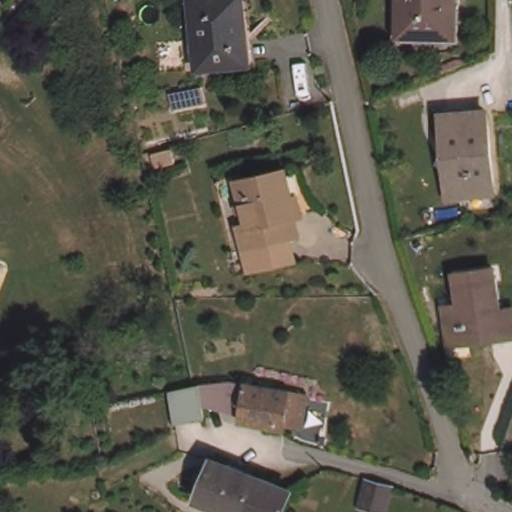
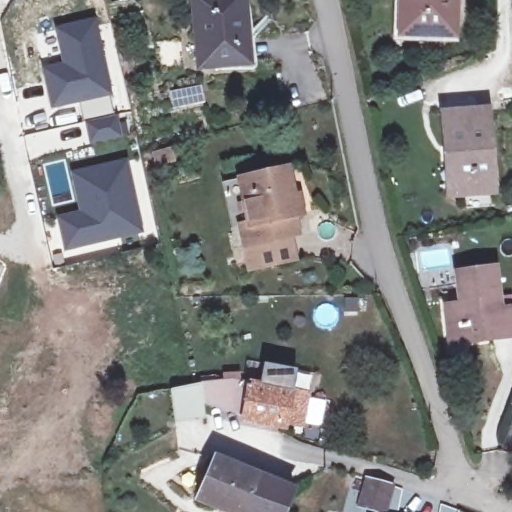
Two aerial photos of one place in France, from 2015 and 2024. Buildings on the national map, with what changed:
unchanged [(220,0),(250,0),(255,35),(245,36),(250,66),(206,73),(197,3),(220,0)]
unchanged [(460,2),(455,3),(456,34),(406,36),(405,0),(460,0),(460,2)]
new [(60,61),(53,26),(96,17),(106,62),(112,99),(50,110),(40,65),(60,61)]
new [(200,83),(204,102),(175,108),(172,88),(200,83)]
unchanged [(446,153),(442,112),(488,107),(497,187),(462,191),(450,192),(446,153)]
new [(117,112),(124,138),(89,145),(83,119),(117,112)]
new [(77,210),(69,171),(129,157),(145,233),(64,252),(55,214),(77,210)]
unchanged [(292,171),(300,198),(308,197),(312,214),(305,216),(309,235),(255,248),(251,229),(260,227),(249,183),(292,171)]
unchanged [(445,327),(442,303),(459,302),(455,272),(494,268),(497,307),(512,305),(512,332),(462,338),(447,339),(445,327)]
unchanged [(198,387),(236,382),(293,391),(287,421),(255,414),(201,401),(205,416),(174,424),(167,396),(167,394),(198,387)]
unchanged [(243,512),(239,510),(197,493),(213,454),(246,468),(251,470),(255,472),(294,488),(284,512),(243,512)]
unchanged [(390,491),(385,512),(368,512),(358,509),(365,484),(390,491)]
new [(459,509),(458,512),(439,512),(440,503),(459,509)]

